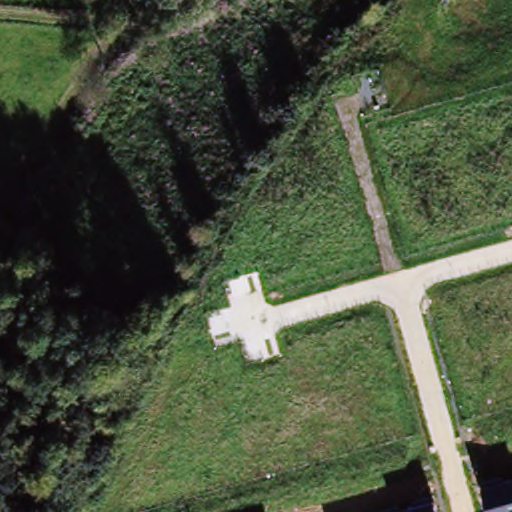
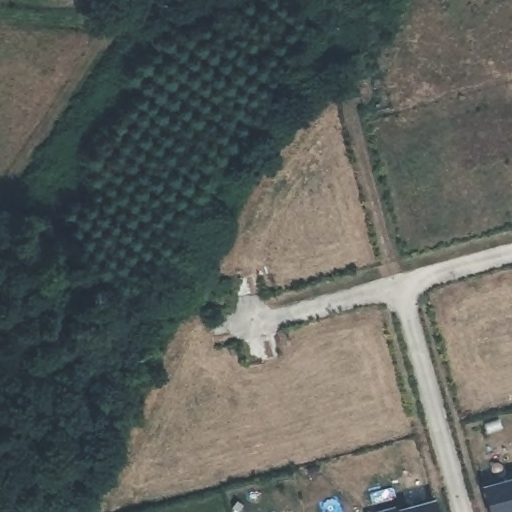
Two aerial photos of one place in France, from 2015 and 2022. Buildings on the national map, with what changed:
unchanged [(512,479),(512,512),(487,512),(481,488),(512,479)]
unchanged [(397,506),(398,510),(434,500),(437,512),(374,512),(397,506)]

